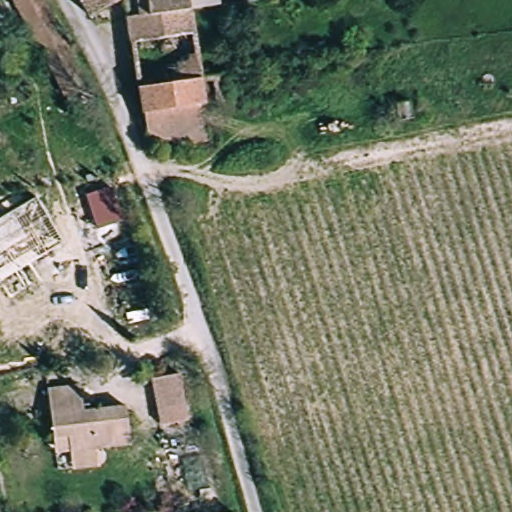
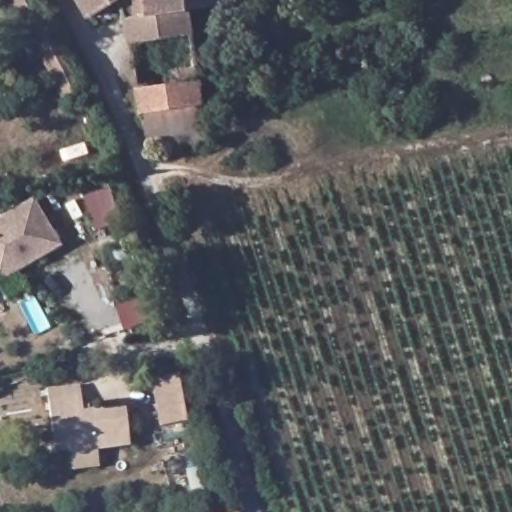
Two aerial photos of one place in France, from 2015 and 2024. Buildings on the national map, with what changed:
unchanged [(11,0),(25,0),(14,6),(11,0)]
unchanged [(41,0),(87,85),(62,95),(14,6),(25,0),(41,0)]
unchanged [(126,18),(118,1),(86,17),(76,0),(186,0),(187,7),(126,18)]
unchanged [(189,7),(187,7),(186,0),(216,0),(217,3),(189,7)]
unchanged [(189,7),(192,31),(130,41),(126,18),(187,7),(189,7)]
unchanged [(200,79),(225,75),(229,100),(204,104),(210,139),(152,150),(130,41),(192,31),(200,79)]
unchanged [(398,119),(395,103),(409,102),(411,117),(398,119)]
unchanged [(87,196),(112,188),(121,221),(97,227),(87,196)]
new [(0,216),(35,195),(63,244),(0,281),(0,216)]
unchanged [(189,423),(162,427),(156,382),(183,378),(189,423)]
unchanged [(80,383),(81,407),(128,406),(129,449),(51,452),(47,385),(80,383)]

